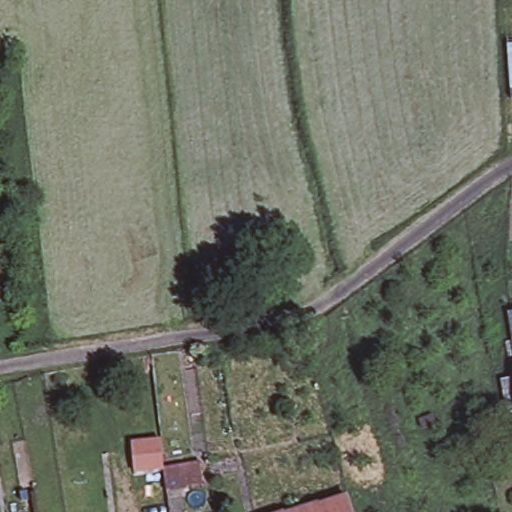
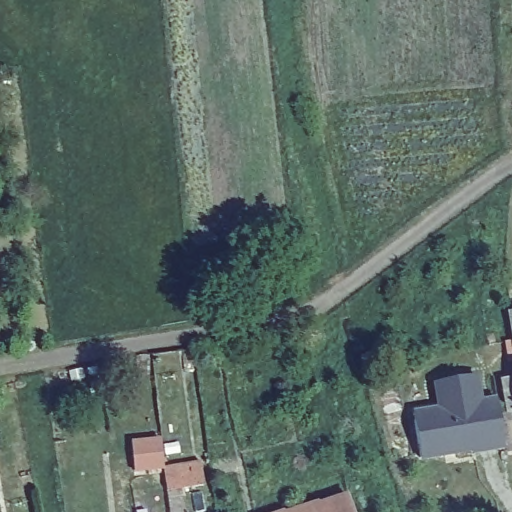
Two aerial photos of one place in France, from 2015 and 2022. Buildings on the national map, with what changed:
demolished [(501,13),(512,12),(512,100),(507,100),(501,13)]
new [(416,410),(437,406),(433,381),(479,374),(482,400),(502,396),(500,378),(512,377),(512,448),(506,450),(472,456),(472,452),(422,460),(416,410)]
demolished [(502,414),(509,413),(504,380),(512,378),(512,448),(507,449),(502,414)]
new [(162,438),(164,467),(136,470),(134,440),(162,438)]
unchanged [(203,460),(206,482),(173,489),(170,466),(203,460)]
unchanged [(294,512),(352,495),(357,512),(294,512)]

